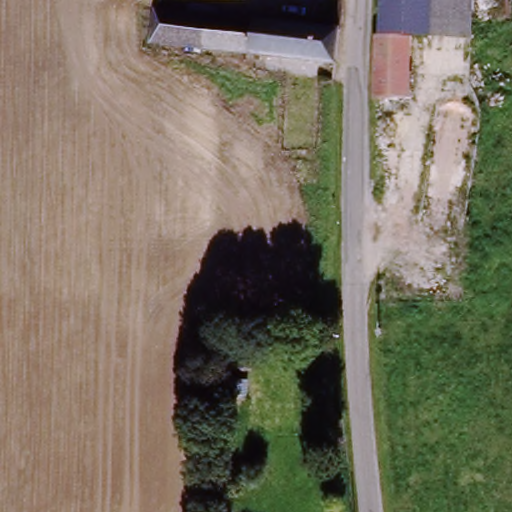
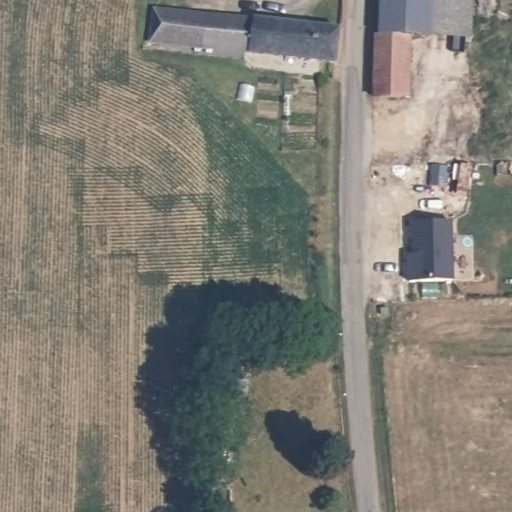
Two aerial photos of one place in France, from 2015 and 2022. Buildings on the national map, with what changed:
unchanged [(377,101),(377,94),(378,45),(380,37),(381,0),(434,0),(433,41),(410,40),(409,76),(415,76),(414,103),(409,101),(377,101)]
unchanged [(434,0),(474,0),(472,42),(433,41),(434,0)]
unchanged [(270,18),(342,27),(337,63),(262,53),(262,56),(255,56),(255,52),(160,38),(151,36),(155,12),(157,4),(270,20),(270,18)]
new [(410,282),(410,260),(415,260),(415,221),(454,220),(455,280),(410,282)]

